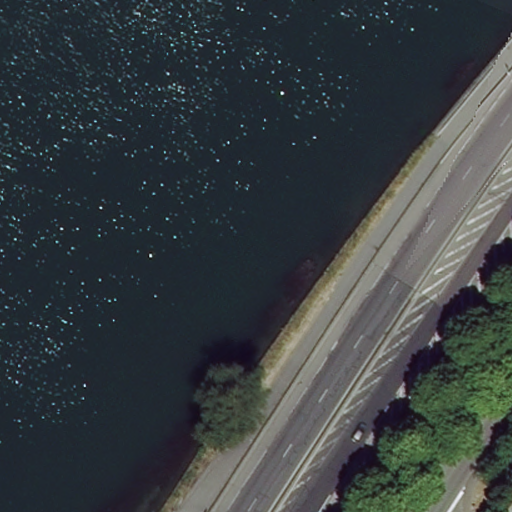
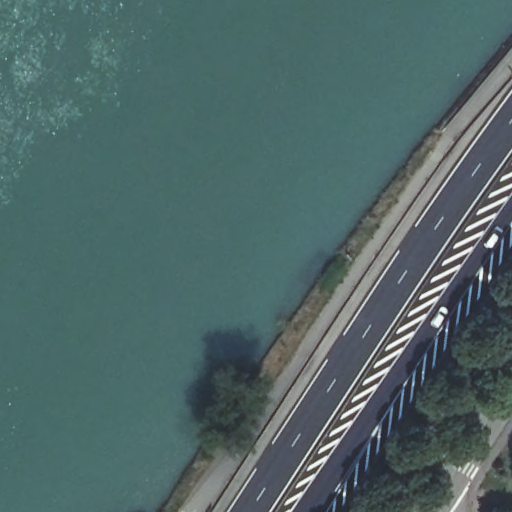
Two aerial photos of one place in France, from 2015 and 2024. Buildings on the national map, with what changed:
[]

